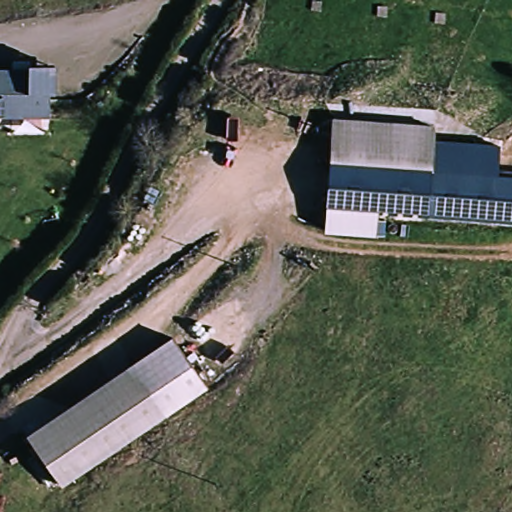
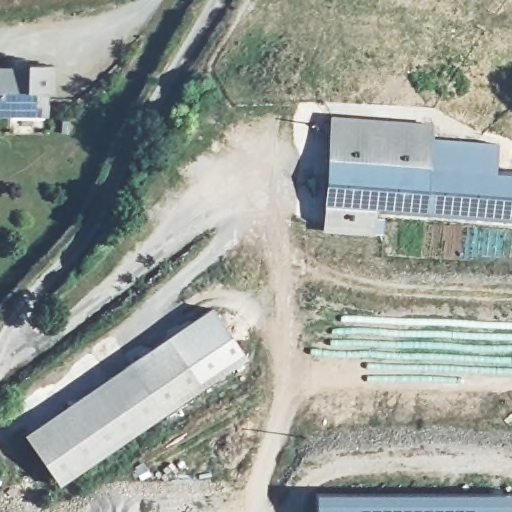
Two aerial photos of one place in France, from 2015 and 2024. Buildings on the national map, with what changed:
unchanged [(48,94),(47,119),(0,118),(0,69),(25,70),(25,65),(54,65),(54,94),(48,94)]
unchanged [(321,215),(326,116),(432,122),(431,146),(467,147),(465,173),(512,176),(512,225),(321,215)]
new [(170,336),(210,306),(248,360),(206,388),(170,336)]
unchanged [(206,388),(61,486),(26,435),(170,336),(206,388)]
new [(314,495),(512,494),(512,512),(315,512),(314,495)]

